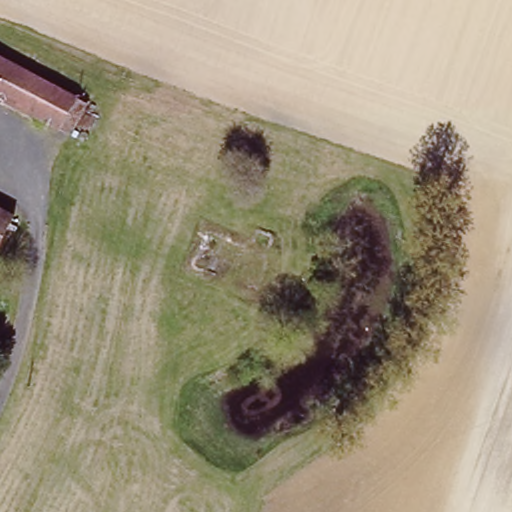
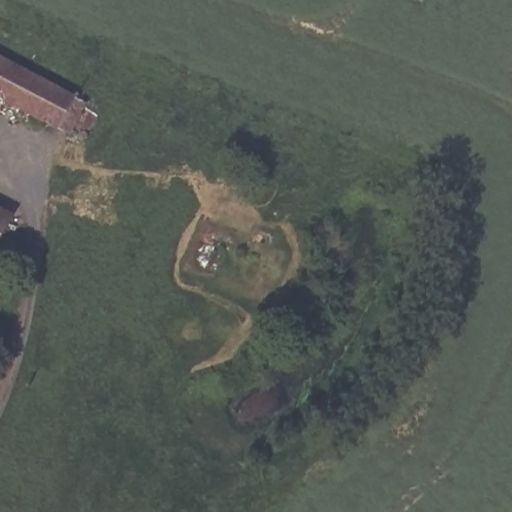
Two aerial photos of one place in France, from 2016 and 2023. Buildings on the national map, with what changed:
unchanged [(89,103),(72,136),(0,99),(0,56),(89,103)]
unchanged [(7,210),(2,221),(11,224),(0,248),(0,207),(7,210)]

